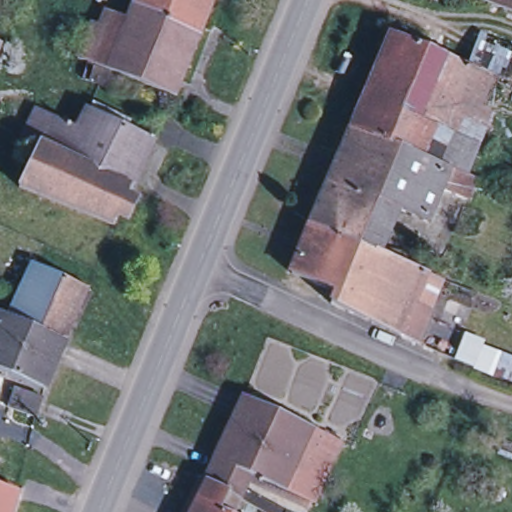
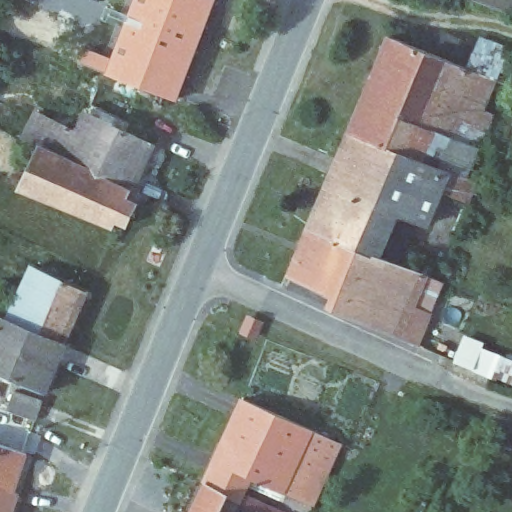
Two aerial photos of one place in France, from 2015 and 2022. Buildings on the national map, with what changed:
unchanged [(131,1),(131,0),(211,0),(200,27),(131,1)]
unchanged [(415,0),(436,0),(433,7),(415,0)]
unchanged [(465,0),(512,0),(512,18),(465,0)]
unchanged [(96,27),(103,9),(124,17),(131,1),(200,27),(187,60),(173,94),(75,57),(88,24),(96,27)]
unchanged [(390,37),(413,47),(469,69),(492,79),(480,110),(377,67),(390,37)]
unchanged [(498,46),(512,52),(512,87),(492,79),(469,69),(482,39),(498,46)]
unchanged [(377,67),(480,110),(490,114),(477,147),(362,102),(377,67)]
unchanged [(465,202),(437,192),(425,226),(393,211),(330,179),(350,132),(362,102),(477,147),(465,177),(474,180),(465,202)]
unchanged [(37,151),(22,145),(35,117),(77,137),(72,147),(138,177),(112,232),(17,194),(37,151)]
unchanged [(77,137),(87,119),(152,150),(138,177),(72,147),(77,137)]
unchanged [(393,211),(376,254),(310,227),(330,179),(393,211)]
unchanged [(414,345),(397,337),(328,306),(333,294),(290,276),(310,227),(376,254),(426,274),(412,306),(427,313),(414,345)]
unchanged [(32,270),(86,294),(70,332),(18,308),(23,295),(32,270)]
unchanged [(0,300),(5,288),(23,295),(18,308),(70,332),(63,348),(42,397),(0,378),(0,300)]
unchanged [(512,358),(512,383),(493,376),(454,361),(462,339),(512,358)]
unchanged [(40,403),(33,421),(7,412),(14,393),(40,403)]
unchanged [(310,425),(292,466),(284,487),(250,473),(257,457),(220,442),(242,393),(310,425)]
unchanged [(338,437),(320,478),(292,466),(310,425),(338,437)]
unchanged [(231,512),(187,512),(205,476),(220,442),(257,457),(250,473),(243,490),(261,497),(257,506),(240,496),(230,512),(231,512)]
new [(0,443),(30,453),(17,492),(0,486),(0,443)]
unchanged [(0,486),(21,493),(15,512),(0,512),(0,486)]

